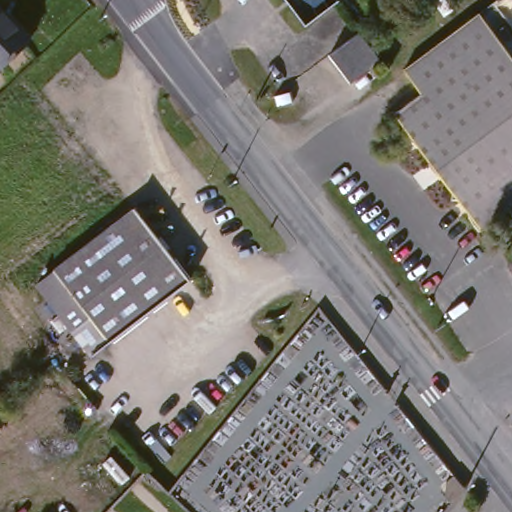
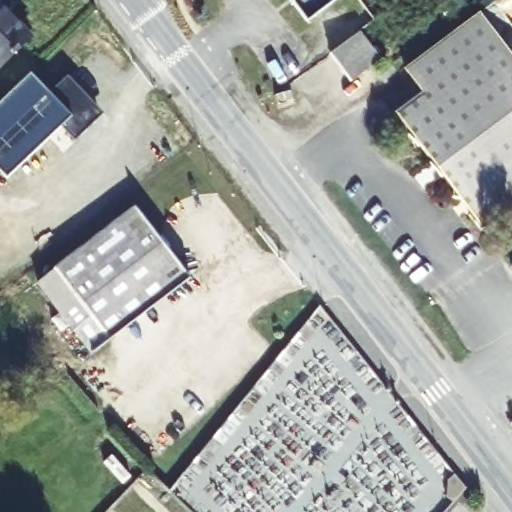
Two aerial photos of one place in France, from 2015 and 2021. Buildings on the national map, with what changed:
unchanged [(289,0),(336,0),(306,22),(289,0)]
unchanged [(1,69),(0,67),(0,4),(32,39),(1,69)]
unchanged [(471,219),(460,205),(452,204),(453,196),(443,182),(441,183),(430,169),(432,167),(420,151),(418,152),(408,140),(410,139),(395,118),(422,98),(404,74),(426,58),(478,19),(480,17),(512,60),(512,218),(509,215),(480,236),(469,221),(471,219)]
unchanged [(330,54),(357,34),(378,62),(352,82),(330,54)]
new [(34,70),(53,90),(71,72),(100,104),(99,117),(77,138),(64,124),(9,175),(0,165),(0,102),(34,70)]
unchanged [(93,356),(38,283),(136,208),(191,280),(93,356)]
unchanged [(512,266),(512,268),(511,267),(512,266)]

